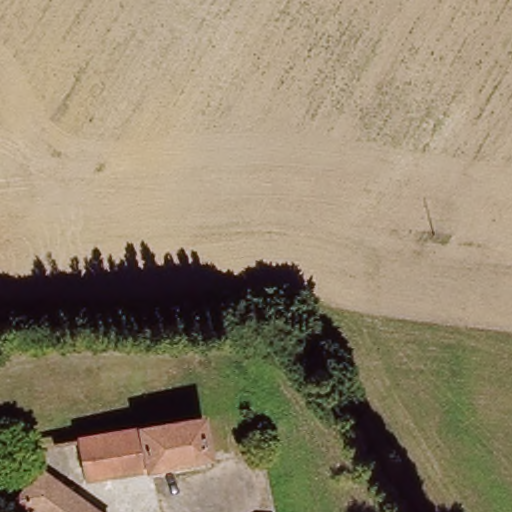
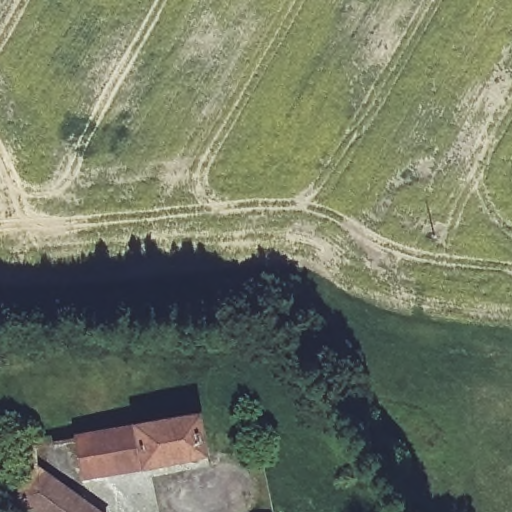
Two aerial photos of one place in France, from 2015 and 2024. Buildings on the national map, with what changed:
unchanged [(201,418),(204,456),(83,470),(79,431),(201,418)]
unchanged [(39,472),(96,512),(40,512),(21,497),(39,472)]

